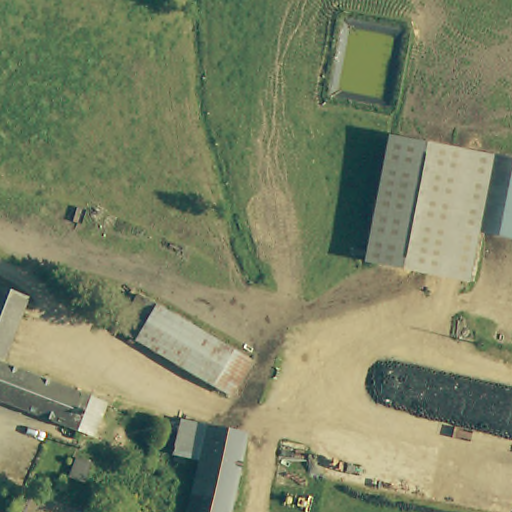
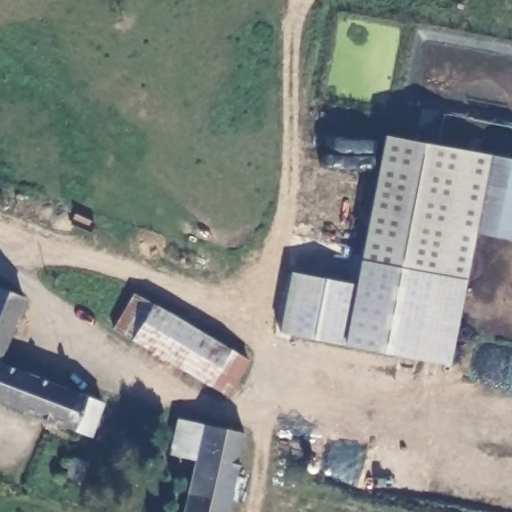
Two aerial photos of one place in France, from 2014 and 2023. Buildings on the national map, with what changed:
unchanged [(458,278),(356,258),(380,134),(481,154),(467,228),(458,278)]
unchanged [(512,160),(512,220),(509,237),(467,228),(481,154),(512,160)]
new [(458,278),(466,279),(449,365),(280,332),(291,272),(351,283),(356,258),(458,278)]
unchanged [(22,297),(0,361),(0,286),(22,297)]
unchanged [(225,399),(106,327),(127,293),(159,312),(224,350),(245,362),(230,389),(225,399)]
unchanged [(99,403),(86,438),(68,432),(0,404),(0,362),(99,403)]
unchanged [(172,455),(180,420),(243,434),(225,512),(186,512),(198,461),(172,455)]
unchanged [(84,489),(72,485),(80,463),(92,466),(84,489)]

